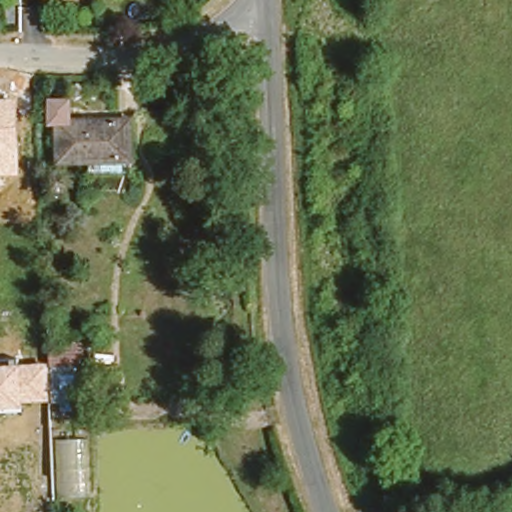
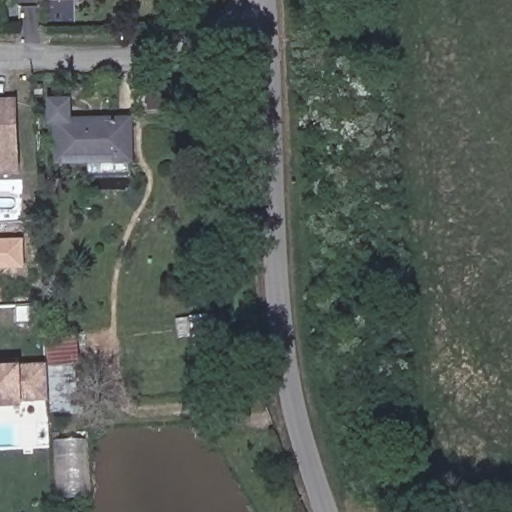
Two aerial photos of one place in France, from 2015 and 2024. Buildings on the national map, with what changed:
unchanged [(57,121),(44,122),(44,97),(73,97),(74,121),(127,121),(128,163),(57,165),(57,138),(57,121)]
unchanged [(19,176),(0,177),(0,100),(17,100),(19,176)]
new [(26,270),(0,270),(0,239),(25,238),(26,270)]
unchanged [(77,331),(85,397),(47,400),(46,371),(45,364),(43,333),(77,331)]
unchanged [(45,364),(46,371),(47,400),(22,402),(21,406),(0,407),(0,365),(45,364)]

